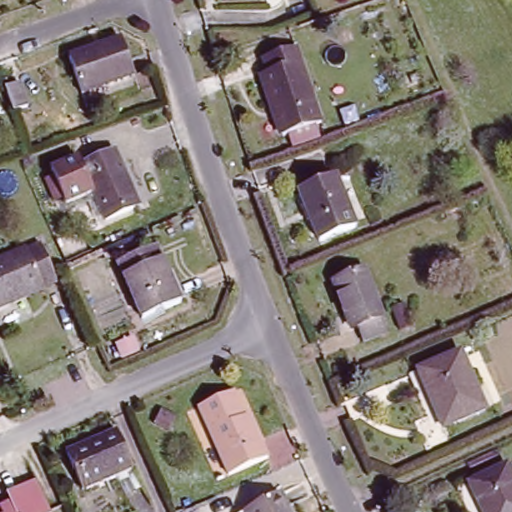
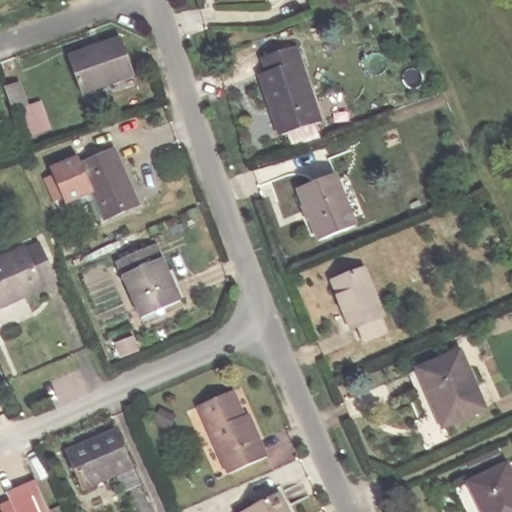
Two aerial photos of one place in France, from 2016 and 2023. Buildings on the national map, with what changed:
unchanged [(122,37),(134,71),(82,90),(70,55),(122,37)]
unchanged [(272,106),(260,76),(272,72),(267,57),(297,45),(325,120),(288,134),(283,136),(272,106)]
unchanged [(15,79),(25,100),(13,105),(5,84),(15,79)]
unchanged [(49,175),(57,172),(55,166),(82,154),(85,161),(116,148),(138,199),(108,213),(96,184),(68,197),(65,190),(57,194),(49,175)]
unchanged [(335,174),(356,225),(322,239),(300,188),(335,174)]
unchanged [(155,242),(178,300),(141,317),(115,259),(155,242)]
unchanged [(61,282),(0,309),(0,262),(43,243),(61,282)]
unchanged [(345,309),(332,280),(365,266),(393,332),(369,342),(362,324),(352,327),(345,309)]
unchanged [(415,327),(402,332),(391,305),(405,300),(415,327)]
unchanged [(458,351),(483,410),(443,427),(418,367),(458,351)]
unchanged [(250,412),(254,421),(269,453),(233,470),(202,404),(232,388),(245,414),(250,412)]
unchanged [(120,430),(135,467),(90,487),(73,450),(120,430)]
unchanged [(510,461),(512,465),(512,512),(487,512),(472,477),(510,461)]
unchanged [(46,512),(3,512),(0,504),(10,499),(7,493),(32,482),(46,512)]
unchanged [(282,491),(291,512),(249,512),(246,505),(282,491)]

